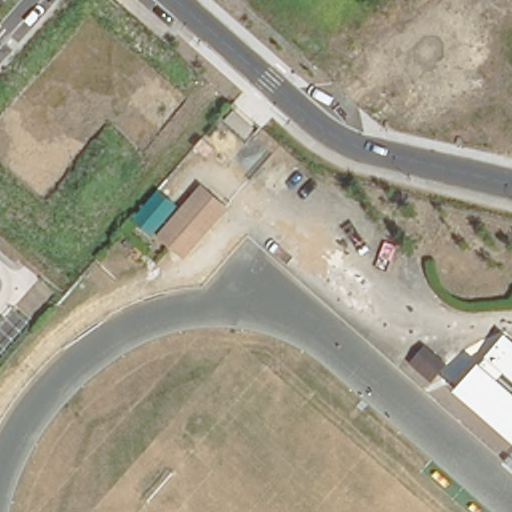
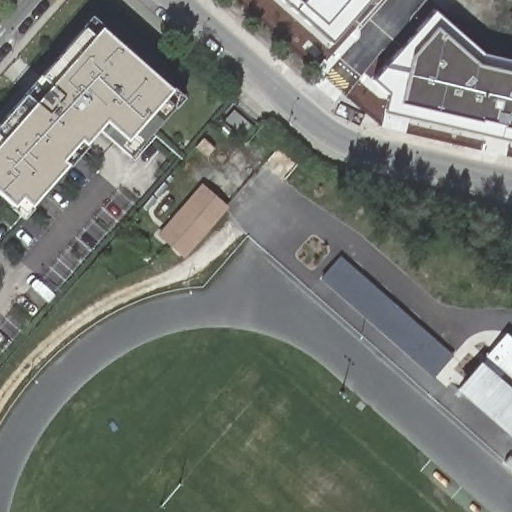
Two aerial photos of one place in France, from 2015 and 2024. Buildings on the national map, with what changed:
new [(282,0),(366,0),(329,43),(282,0)]
new [(436,11),(484,53),(512,60),(512,141),(386,112),(389,95),(375,79),(436,11)]
new [(99,130),(24,215),(0,194),(0,125),(94,19),(184,99),(132,157),(99,130)]
new [(184,258),(159,235),(203,183),(228,207),(184,258)]
demolished [(198,199),(209,210),(183,240),(170,229),(198,199)]
new [(480,362),(506,333),(512,339),(512,391),(480,362)]
unchanged [(431,380),(407,359),(424,341),(447,361),(431,380)]
unchanged [(512,391),(512,438),(455,388),(480,362),(512,391)]

